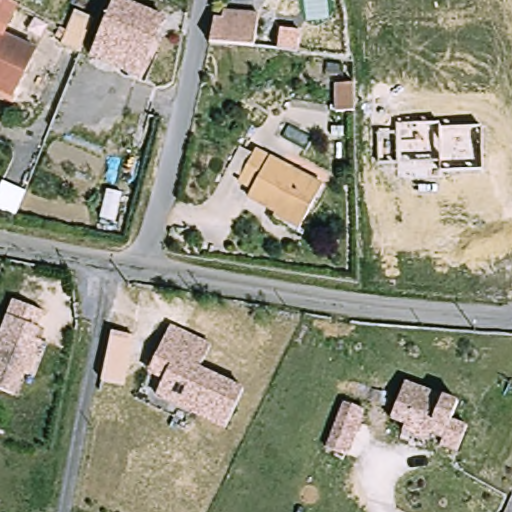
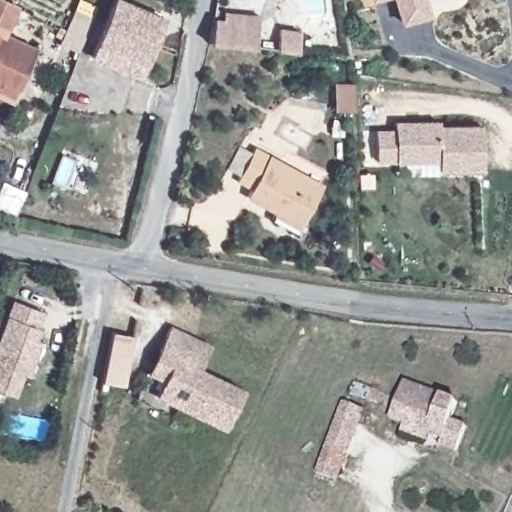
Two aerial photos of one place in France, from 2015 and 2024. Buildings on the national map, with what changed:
unchanged [(15,6),(0,45),(0,0),(4,0),(15,6)]
unchanged [(90,55),(96,41),(113,0),(122,0),(162,17),(144,61),(138,75),(90,55)]
new [(373,2),(372,0),(381,0),(373,2)]
new [(432,16),(402,25),(394,0),(427,0),(432,16)]
unchanged [(210,7),(224,10),(223,16),(258,22),(254,47),(205,42),(210,7)]
unchanged [(94,17),(81,53),(62,44),(75,9),(94,17)]
unchanged [(301,30),(298,52),(278,50),(280,28),(301,30)]
unchanged [(0,89),(0,51),(29,62),(20,84),(15,95),(0,89)]
unchanged [(357,107),(342,107),(341,82),(356,82),(357,107)]
unchanged [(398,130),(397,122),(440,122),(440,127),(482,125),(483,170),(439,172),(439,161),(378,163),(377,132),(398,130)]
unchanged [(273,215),(250,206),(254,195),(238,190),(253,151),(328,180),(313,217),(309,230),(273,215)]
unchanged [(29,374),(23,372),(15,393),(0,388),(0,339),(16,299),(45,310),(38,326),(41,327),(37,337),(42,340),(29,374)]
unchanged [(209,347),(197,370),(241,391),(222,429),(154,396),(162,380),(147,372),(158,351),(170,327),(209,347)]
unchanged [(136,337),(126,387),(103,382),(112,332),(136,337)]
unchanged [(401,433),(403,426),(391,422),(403,385),(457,402),(451,420),(466,425),(458,451),(441,446),(443,438),(432,435),(429,442),(401,433)]
unchanged [(328,451),(343,402),(362,408),(347,456),(328,451)]

